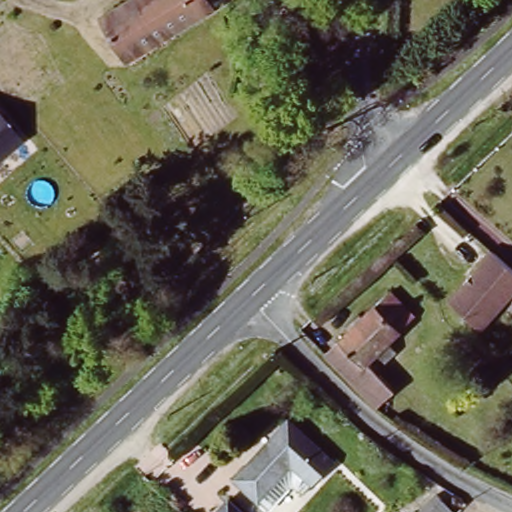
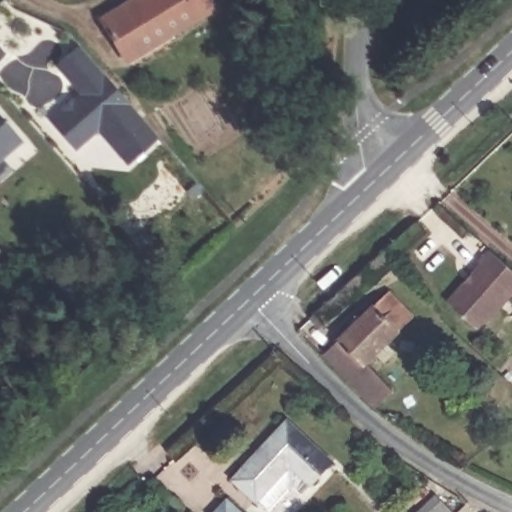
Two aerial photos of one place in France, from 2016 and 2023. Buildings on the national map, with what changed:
unchanged [(101,27),(135,0),(210,0),(214,5),(157,49),(134,68),(129,62),(101,27)]
new [(79,93),(57,64),(80,44),(159,136),(127,163),(99,130),(76,149),(49,119),(79,93)]
unchanged [(22,141),(0,160),(0,117),(22,141)]
unchanged [(489,261),(487,260),(498,247),(512,260),(512,302),(488,329),(455,300),(489,261)]
unchanged [(369,364),(397,393),(378,411),(326,356),(393,294),(417,320),(389,346),(398,355),(387,365),(379,356),(369,364)]
unchanged [(290,417),(339,462),(318,486),(296,470),(261,501),(234,477),(290,417)]
unchanged [(432,494),(446,512),(412,512),(432,494)]
unchanged [(230,500),(243,512),(219,512),(230,500)]

